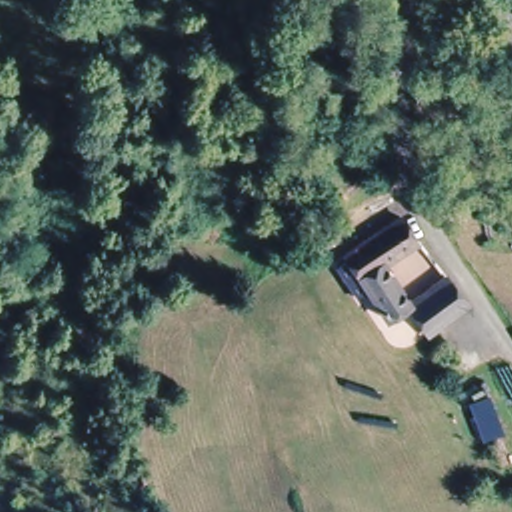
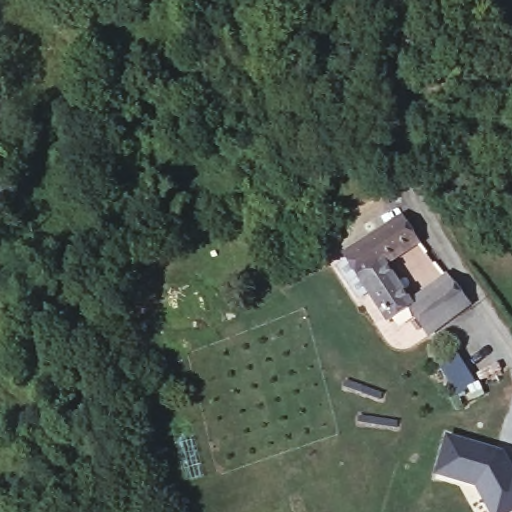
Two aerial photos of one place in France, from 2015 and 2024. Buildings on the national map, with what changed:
unchanged [(409,212),(410,214),(425,237),(389,258),(414,296),(449,274),(470,302),(451,314),(425,331),(406,304),(385,316),(346,251),(409,212)]
new [(512,469),(512,512),(490,512),(477,488),(435,475),(446,435),(501,450),(512,469)]

